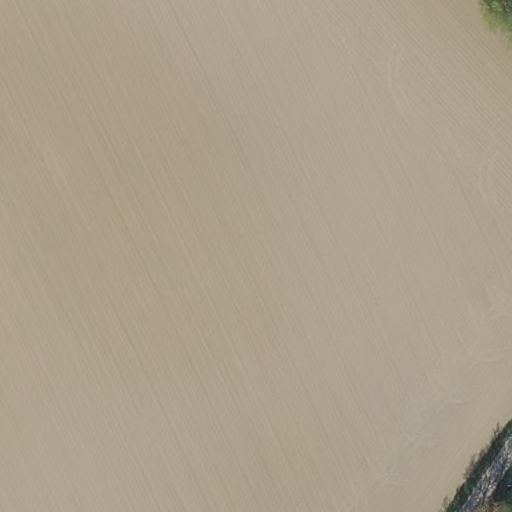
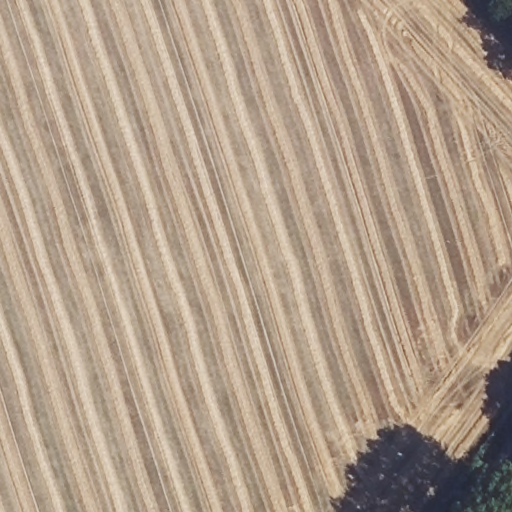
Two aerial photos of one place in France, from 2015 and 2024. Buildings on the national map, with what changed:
[]

